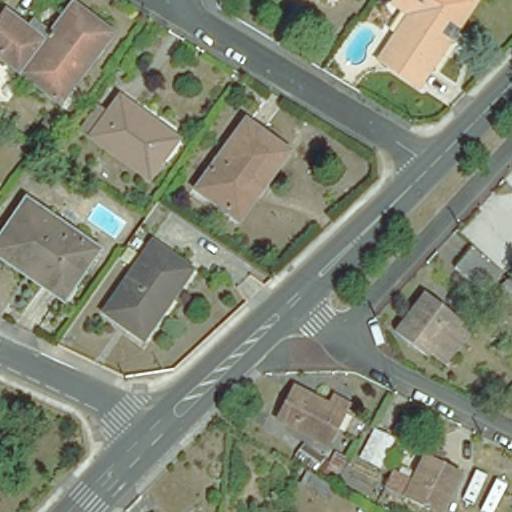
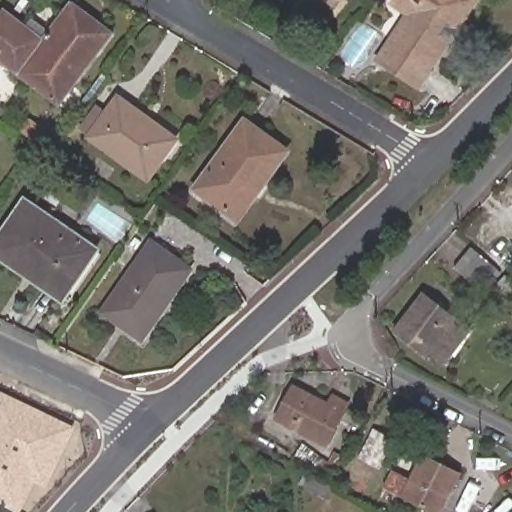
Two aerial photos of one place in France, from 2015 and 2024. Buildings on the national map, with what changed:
unchanged [(448,21),(439,34),(449,40),(418,87),(377,61),(408,14),(392,4),(395,0),(476,0),(458,27),(448,21)]
unchanged [(114,34),(60,105),(0,60),(0,16),(5,10),(26,26),(32,17),(50,31),(72,1),(114,34)]
unchanged [(148,179),(90,138),(119,97),(177,140),(148,179)]
unchanged [(233,215),(196,190),(246,121),(288,152),(261,190),(239,220),(233,215)]
unchanged [(31,276),(0,254),(0,240),(27,201),(97,249),(69,290),(63,297),(31,276)]
unchanged [(142,339),(103,312),(153,241),(193,270),(142,339)]
unchanged [(128,247),(136,252),(127,265),(119,260),(128,247)]
unchanged [(475,292),(446,267),(463,247),(491,272),(475,292)]
unchanged [(509,286),(501,294),(492,285),(500,277),(509,286)]
unchanged [(441,363),(428,352),(424,357),(390,331),(419,294),(466,331),(441,363)]
unchanged [(323,447),(271,418),(289,385),(325,402),(329,395),(346,403),(323,447)]
new [(0,391),(75,426),(47,488),(35,483),(22,512),(19,512),(0,503),(0,392),(0,391)]
unchanged [(373,472),(355,462),(371,433),(389,442),(373,472)]
unchanged [(327,467),(320,476),(291,454),(299,445),(327,467)]
unchanged [(375,492),(385,475),(402,483),(420,450),(436,458),(431,467),(452,478),(434,512),(413,512),(375,492)]
unchanged [(334,467),(325,462),(331,452),(340,457),(334,467)]
unchanged [(302,472),(330,486),(324,497),(296,483),(302,472)]

